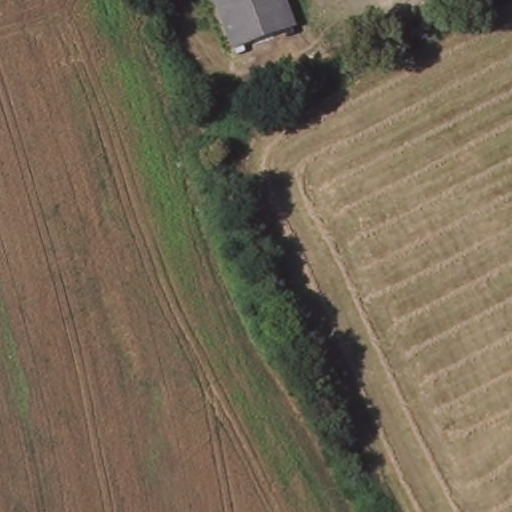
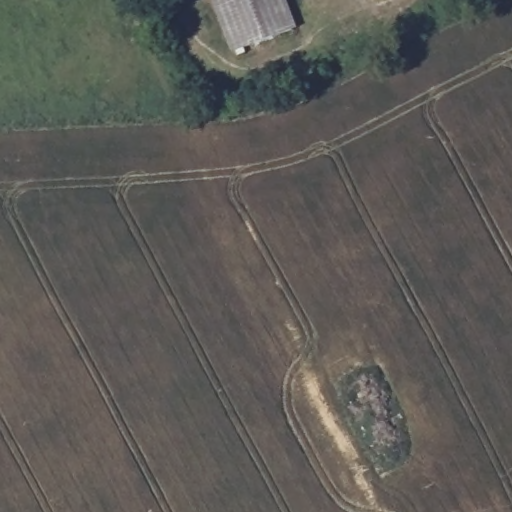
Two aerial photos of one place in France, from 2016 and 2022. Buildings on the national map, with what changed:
unchanged [(288,35),(230,55),(210,0),(275,0),(288,35)]

